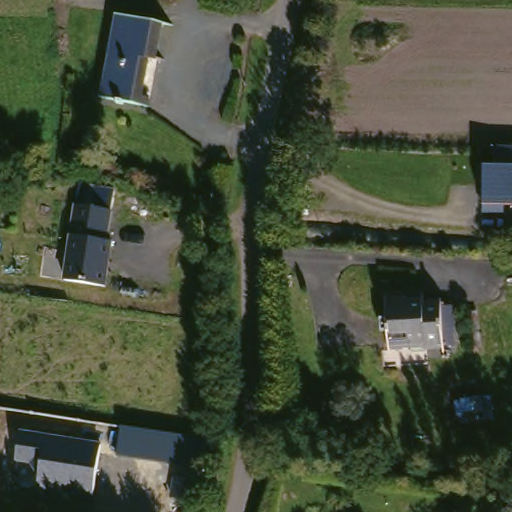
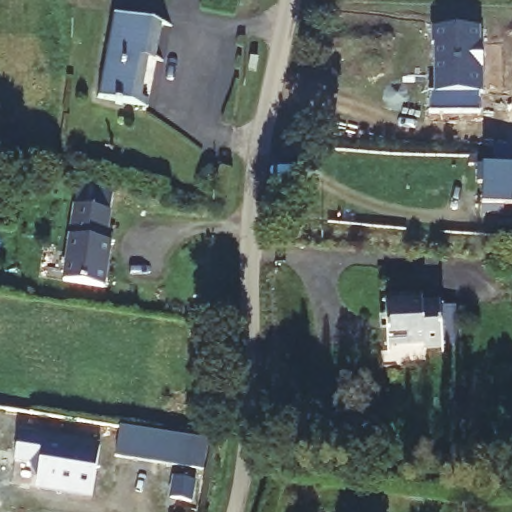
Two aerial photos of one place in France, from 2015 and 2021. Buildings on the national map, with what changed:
unchanged [(106,15),(159,25),(146,101),(92,94),(106,15)]
new [(429,92),(437,91),(436,44),(433,44),(433,29),(480,28),(479,44),(483,44),(483,92),(481,92),(482,114),(431,114),(429,92)]
unchanged [(504,213),(482,213),(483,205),(484,163),(487,163),(487,147),(512,147),(512,205),(504,204),(504,213)]
unchanged [(107,235),(113,237),(106,285),(63,283),(74,202),(111,204),(107,235)]
unchanged [(382,305),(419,304),(420,309),(439,308),(442,343),(383,346),(382,305)]
unchanged [(114,454),(118,427),(186,438),(183,464),(114,454)]
unchanged [(90,499),(36,489),(38,473),(32,467),(13,462),(18,430),(101,443),(90,499)]

